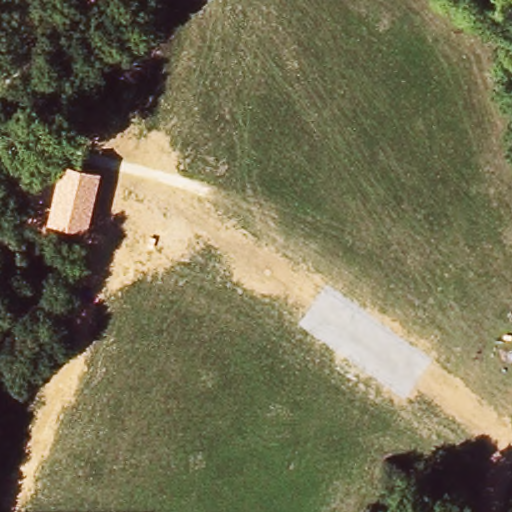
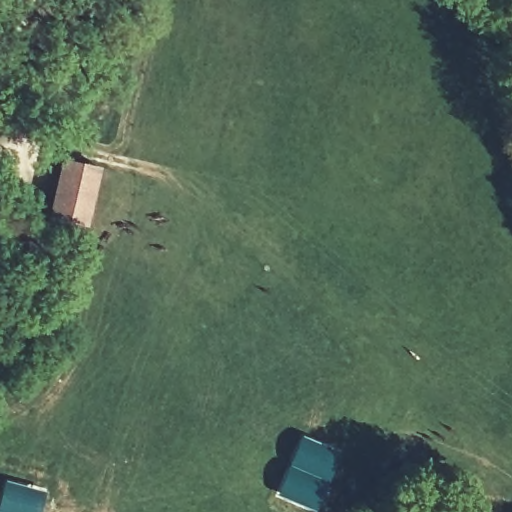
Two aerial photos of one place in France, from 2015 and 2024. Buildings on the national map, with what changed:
unchanged [(59,158),(100,166),(88,229),(46,221),(59,158)]
new [(338,453),(314,512),(313,512),(275,496),(300,437),(338,453)]
new [(36,512),(0,512),(0,491),(2,483),(41,493),(36,512)]

